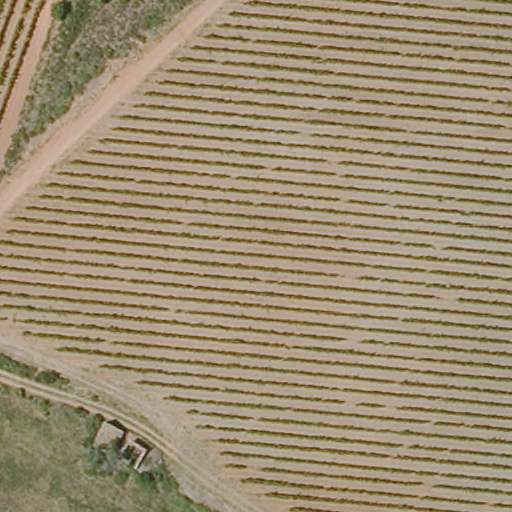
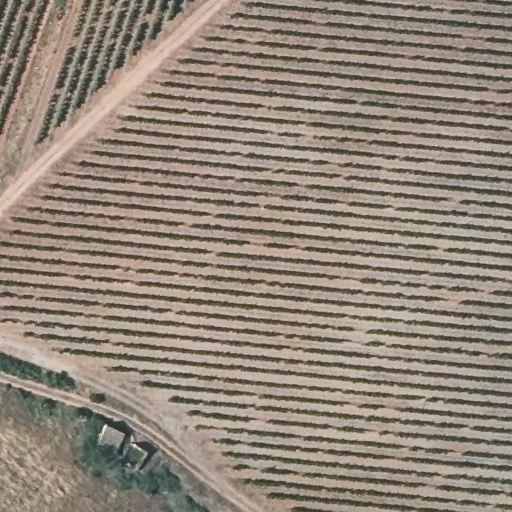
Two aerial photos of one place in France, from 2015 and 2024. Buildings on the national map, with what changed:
unchanged [(87,450),(99,426),(119,435),(107,458),(87,450)]
unchanged [(140,449),(130,468),(115,461),(124,443),(140,449)]

